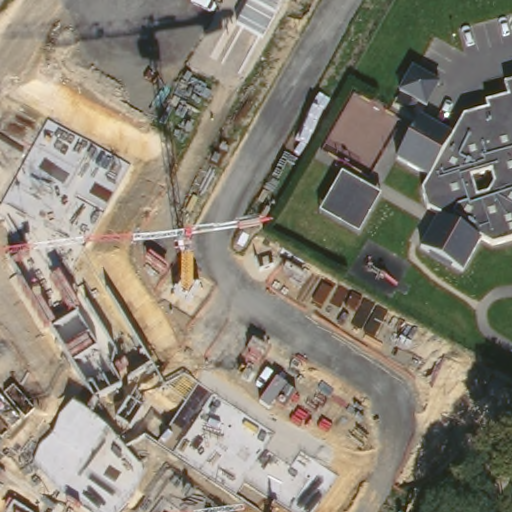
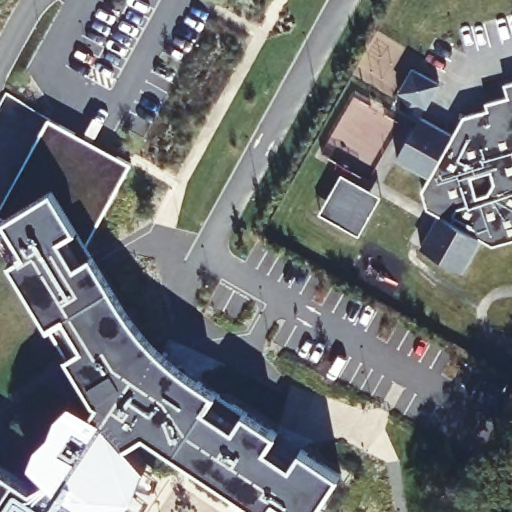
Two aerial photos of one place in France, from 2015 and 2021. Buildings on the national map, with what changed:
unchanged [(441,86),(428,110),(401,96),(413,72),(441,86)]
unchanged [(481,241),(463,274),(421,252),(439,218),(426,212),(421,194),(428,180),(394,162),(417,120),(450,137),(460,118),(484,111),(482,104),(504,97),(500,85),(512,81),(512,241),(493,247),(481,241)]
new [(85,244),(92,253),(117,295),(136,323),(159,349),(196,379),(215,392),(205,407),(233,427),(246,409),(278,432),(268,447),(292,464),(301,449),(340,475),(315,512),(296,512),(276,498),(266,512),(261,512),(143,431),(125,445),(145,465),(135,498),(119,512),(0,512),(0,464),(32,485),(45,476),(32,464),(38,446),(53,432),(58,415),(72,402),(93,412),(98,401),(71,356),(85,346),(66,313),(49,323),(14,262),(27,253),(6,219),(0,214),(0,212),(48,119),(128,164),(85,244)]
unchanged [(380,200),(359,240),(319,219),(340,179),(380,200)]

